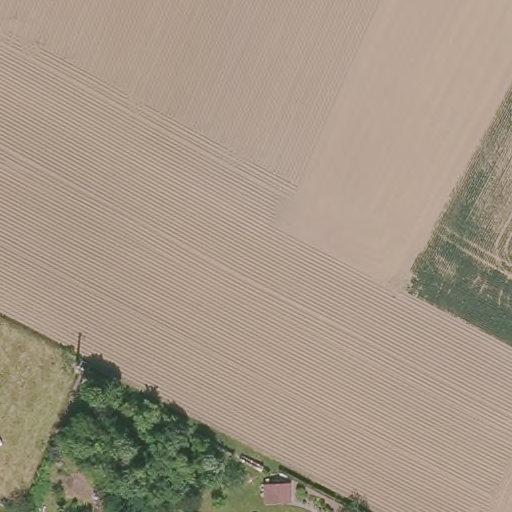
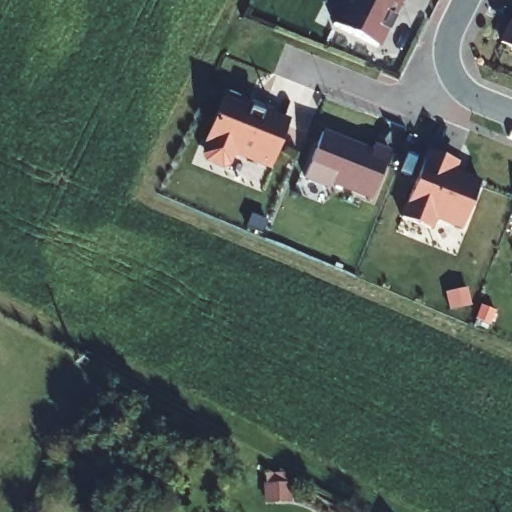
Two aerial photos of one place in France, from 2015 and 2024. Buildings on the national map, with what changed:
new [(403,0),(380,46),(330,21),(340,0),(403,0)]
new [(512,46),(499,40),(512,15),(512,46)]
new [(271,168),(236,154),(230,164),(223,167),(205,159),(201,153),(225,91),(255,103),(251,107),(262,112),(265,107),(290,118),(271,168)]
new [(372,148),(375,142),(391,149),(372,198),(331,183),(330,187),(304,178),(323,129),(372,148)]
new [(462,228),(437,219),(433,230),(400,217),(427,149),(459,161),(455,170),(481,178),(462,228)]

